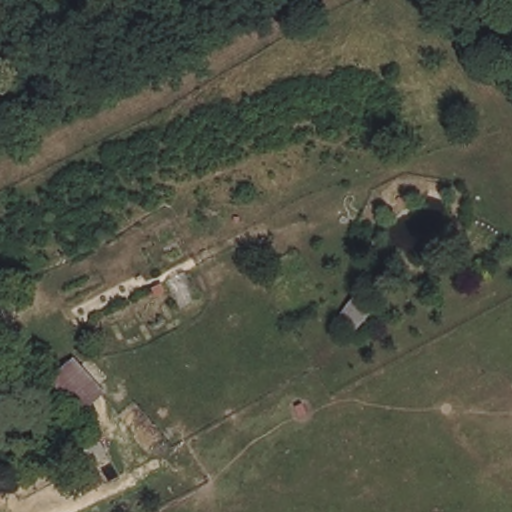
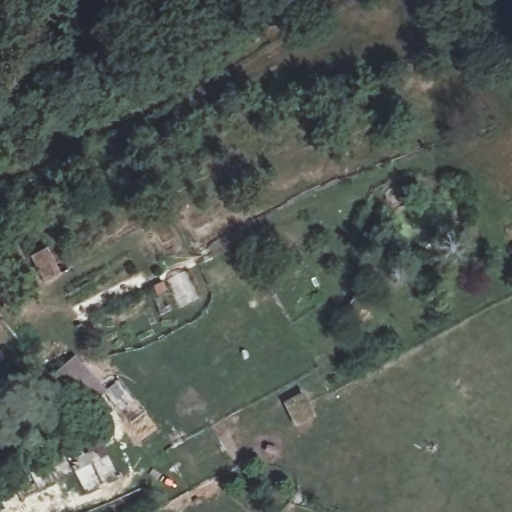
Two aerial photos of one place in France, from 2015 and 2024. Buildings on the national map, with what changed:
unchanged [(47,374),(65,359),(95,391),(77,406),(47,374)]

